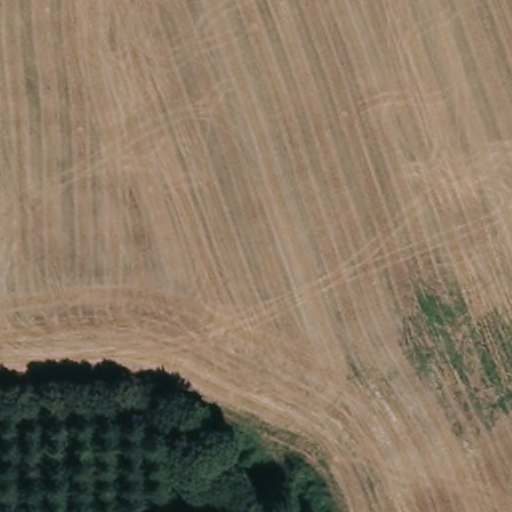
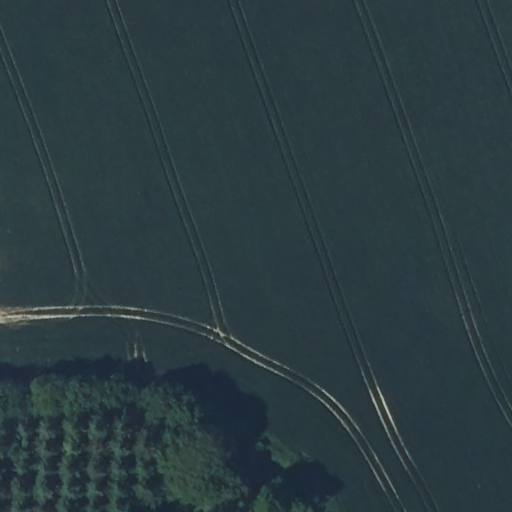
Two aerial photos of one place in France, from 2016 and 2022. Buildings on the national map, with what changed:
[]

